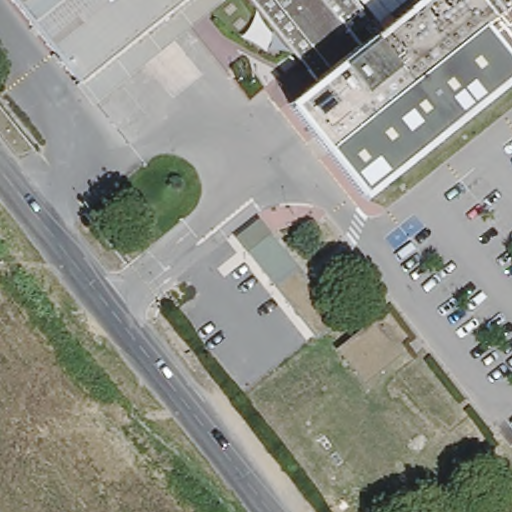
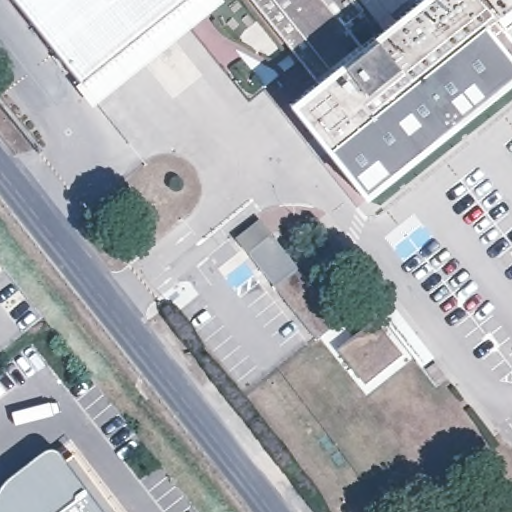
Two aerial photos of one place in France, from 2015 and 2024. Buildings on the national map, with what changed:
unchanged [(79,83),(13,0),(182,0),(79,83)]
unchanged [(182,0),(220,0),(216,4),(174,39),(92,107),(75,86),(79,83),(182,0)]
unchanged [(362,196),(292,107),(319,85),(251,0),(351,0),(360,10),(341,25),(362,50),(426,0),(512,0),(512,77),(362,196)]
unchanged [(216,4),(253,50),(210,84),(174,39),(216,4)]
unchanged [(316,338),(247,252),(245,253),(233,238),(259,217),(271,232),(269,235),(338,320),(316,338)]
unchanged [(400,354),(363,385),(335,349),(373,319),(400,354)]
new [(45,450),(50,449),(54,450),(58,452),(65,460),(103,512),(0,512),(0,487),(3,483),(45,450)]

